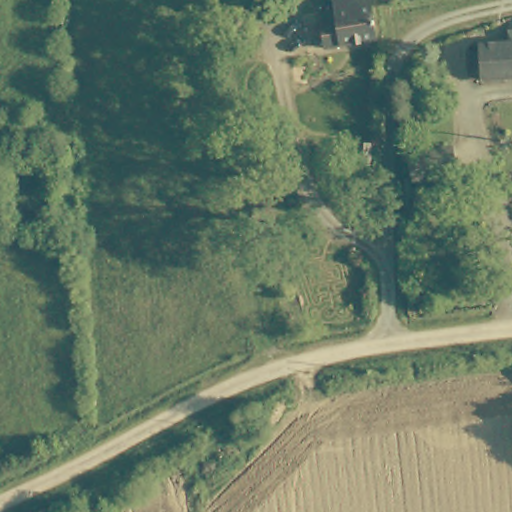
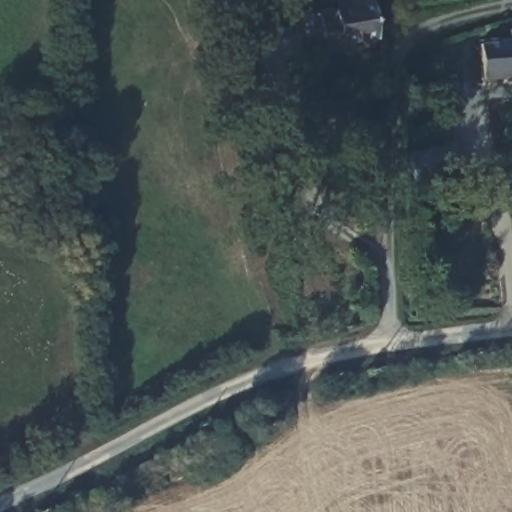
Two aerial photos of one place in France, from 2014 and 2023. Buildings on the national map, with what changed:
unchanged [(374,0),(381,39),(330,47),(324,13),(337,10),(335,0),(374,0)]
unchanged [(507,43),(506,31),(512,31),(512,75),(510,75),(484,78),(481,45),(507,43)]

